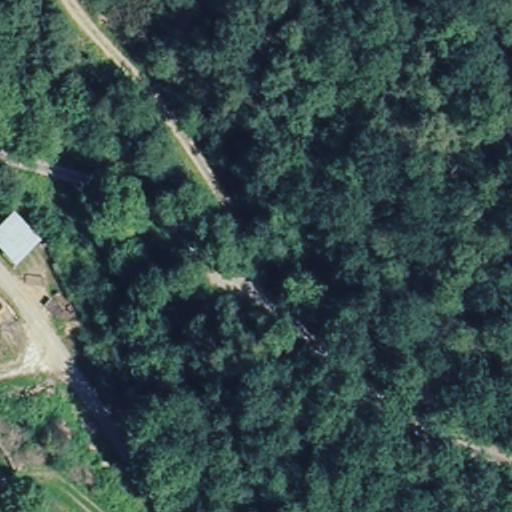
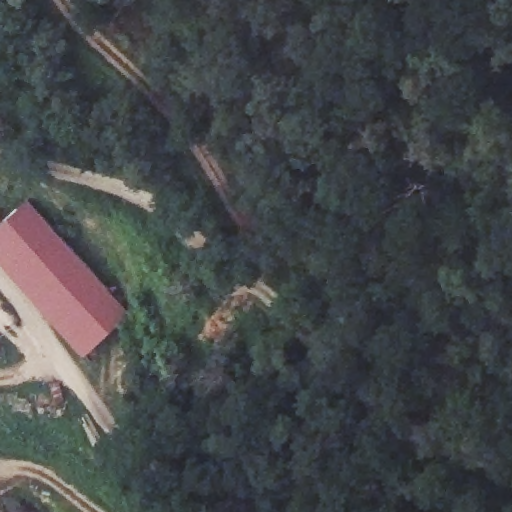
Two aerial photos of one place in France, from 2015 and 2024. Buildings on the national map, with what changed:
new [(0,262),(0,226),(28,202),(130,318),(84,357),(0,262)]

